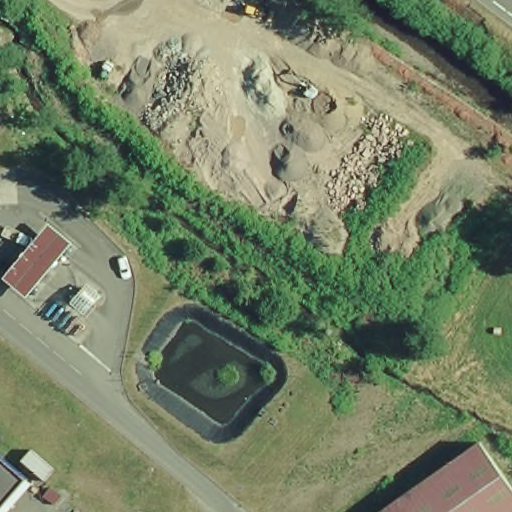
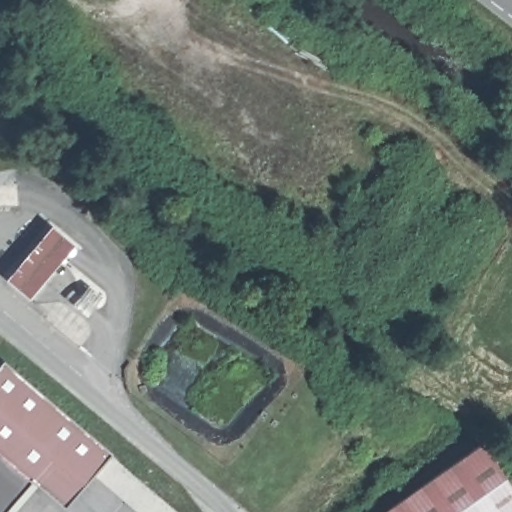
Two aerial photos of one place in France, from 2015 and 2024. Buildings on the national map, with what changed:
unchanged [(34,300),(13,282),(56,231),(73,247),(34,300)]
new [(0,357),(113,456),(68,504),(30,482),(0,456),(0,357)]
unchanged [(512,512),(385,512),(479,445),(512,492),(512,512)]
unchanged [(6,512),(0,512),(0,456),(30,482),(6,512)]

